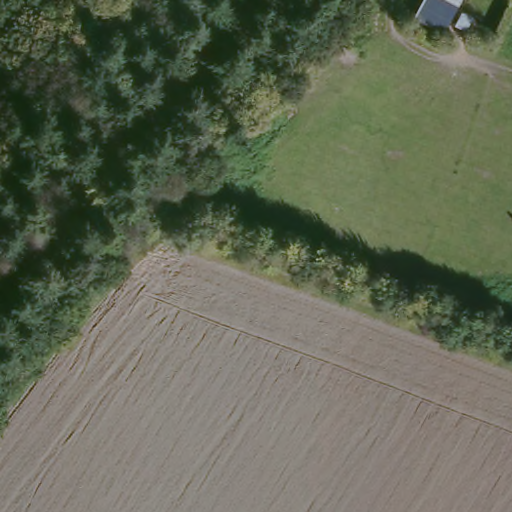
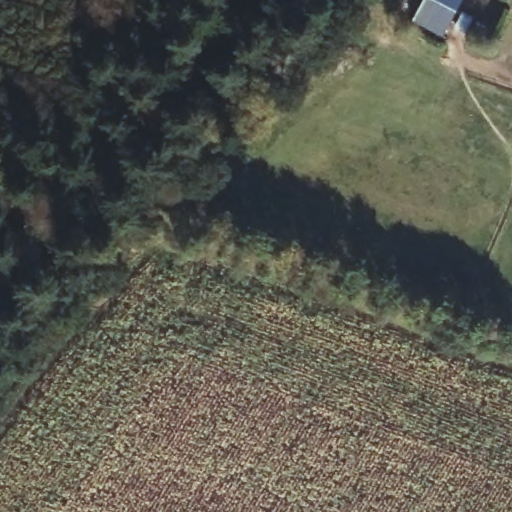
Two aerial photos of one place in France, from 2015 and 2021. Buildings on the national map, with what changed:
unchanged [(455,11),(440,37),(414,21),(425,0),(462,0),(455,11)]

